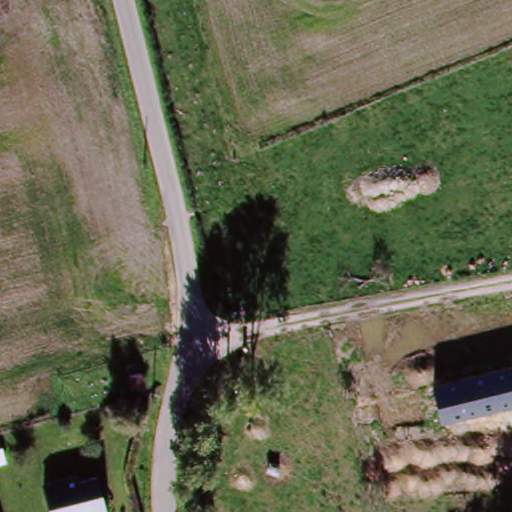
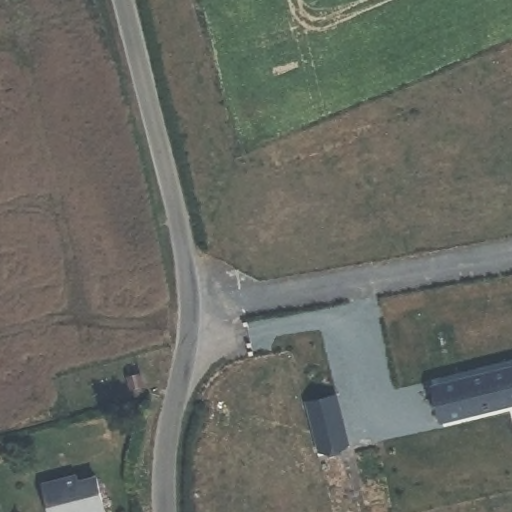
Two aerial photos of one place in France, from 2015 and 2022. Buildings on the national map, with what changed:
unchanged [(425,370),(512,347),(512,378),(432,397),(425,370)]
demolished [(135,386),(133,372),(147,370),(150,384),(135,386)]
unchanged [(438,424),(432,397),(512,378),(512,407),(443,423),(438,424)]
new [(315,446),(310,427),(304,397),(334,390),(340,420),(345,440),(315,446)]
unchanged [(75,471),(75,476),(95,471),(107,512),(47,512),(39,480),(75,471)]

